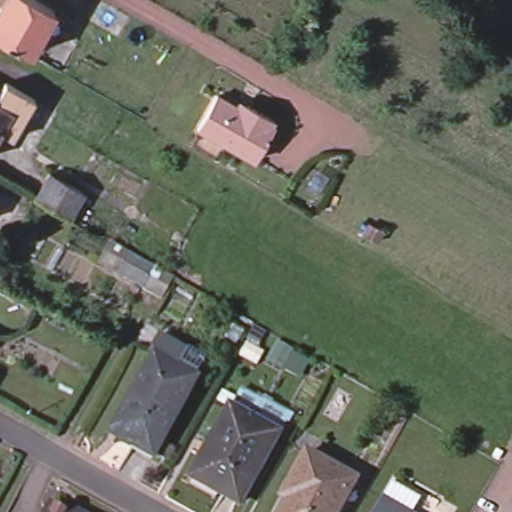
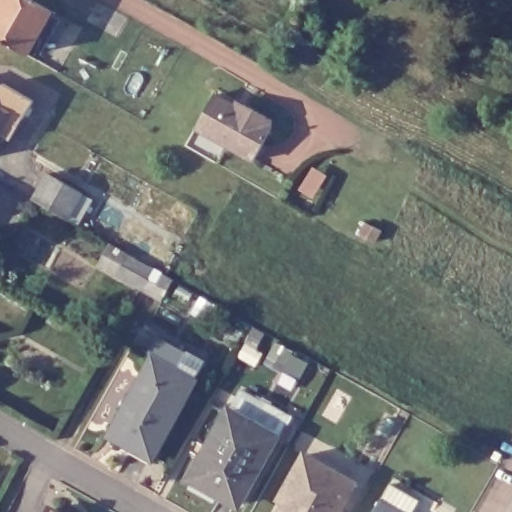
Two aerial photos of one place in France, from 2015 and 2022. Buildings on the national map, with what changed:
unchanged [(0,2),(1,0),(35,0),(54,11),(29,53),(0,37),(0,2)]
unchanged [(32,99),(25,113),(22,117),(10,111),(0,128),(0,91),(5,84),(32,99)]
unchanged [(195,127),(211,99),(214,95),(233,105),(236,99),(244,104),(272,119),(269,125),(272,127),(270,132),(254,160),(195,127)]
unchanged [(82,194),(68,219),(33,199),(47,174),(82,194)]
unchanged [(135,258),(152,270),(143,287),(124,276),(135,258)]
unchanged [(106,442),(130,402),(126,399),(145,366),(139,362),(149,345),(155,348),(195,371),(185,388),(143,463),(106,442)]
unchanged [(236,400),(255,411),(256,410),(284,425),(272,447),(270,446),(225,420),(236,400)]
unchanged [(233,512),(188,487),(225,420),(270,446),(233,512)]
unchanged [(290,494),(285,492),(305,455),(350,478),(331,512),(279,512),(290,494)]
unchanged [(372,507),(385,482),(415,499),(408,512),(369,512),(372,507)]
unchanged [(46,508),(53,512),(44,512),(46,508)]

